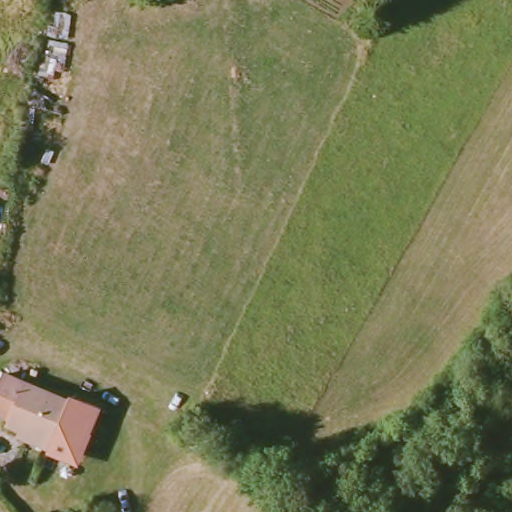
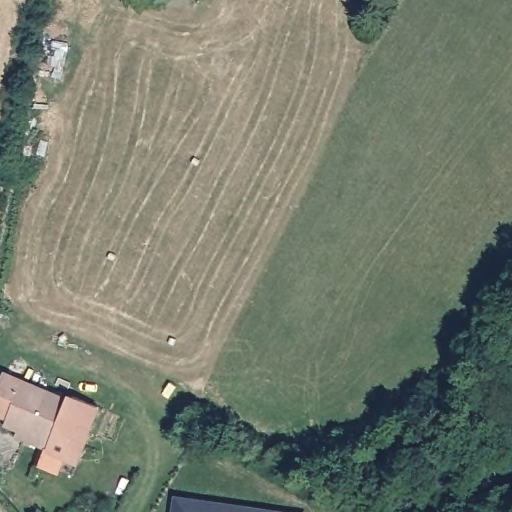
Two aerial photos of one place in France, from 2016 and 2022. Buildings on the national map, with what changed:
unchanged [(20,444),(25,431),(15,427),(16,419),(0,412),(0,405),(12,376),(75,401),(78,395),(103,404),(93,431),(91,429),(84,449),(70,453),(56,447),(51,457),(20,444)]
new [(175,496),(292,512),(173,512),(175,496)]

